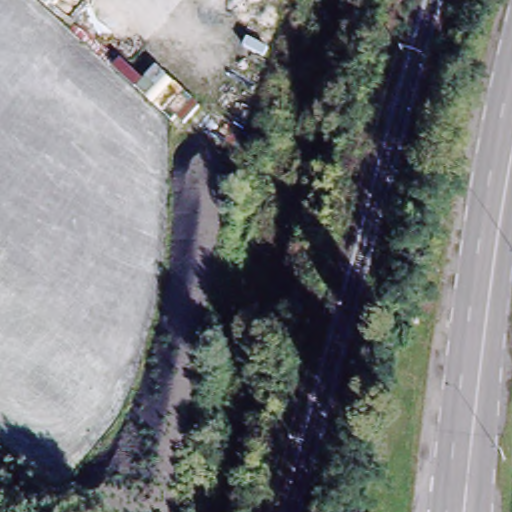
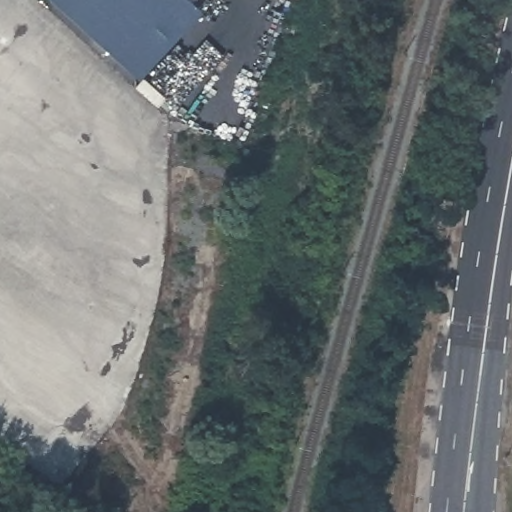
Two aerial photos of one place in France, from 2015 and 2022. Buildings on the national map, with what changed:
new [(137,80),(49,0),(187,0),(199,11),(137,80)]

